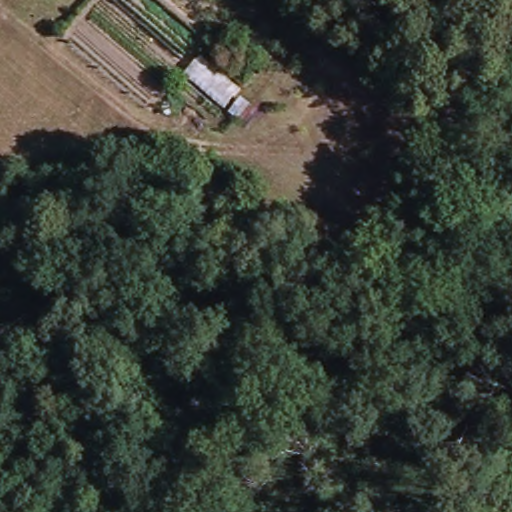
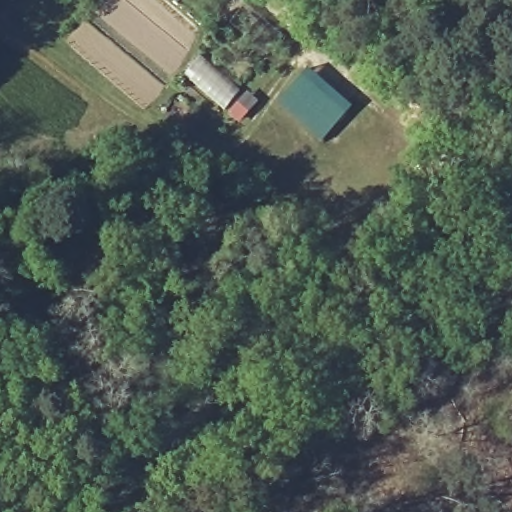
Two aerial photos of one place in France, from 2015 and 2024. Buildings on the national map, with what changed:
new [(275,105),(300,75),(344,113),(320,142),(275,105)]

